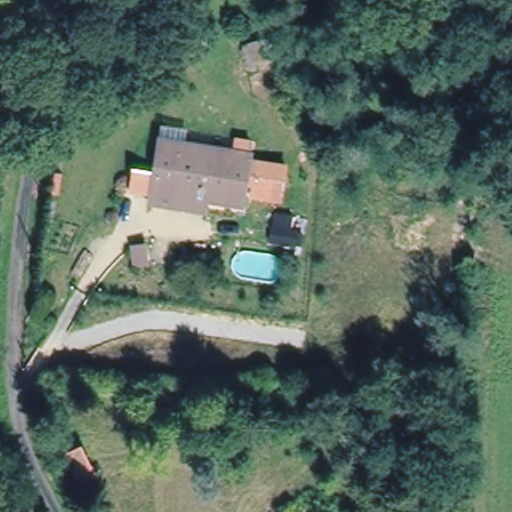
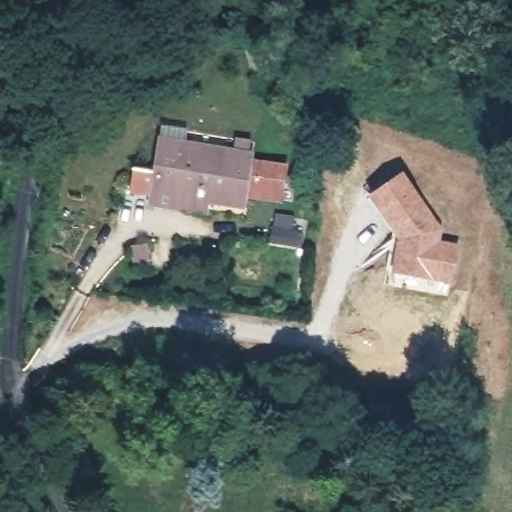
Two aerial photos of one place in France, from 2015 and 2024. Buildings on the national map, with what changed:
unchanged [(156,195),(158,186),(135,182),(139,161),(162,165),(167,134),(255,147),(246,197),(213,192),(211,204),(156,195)]
unchanged [(289,163),(283,203),(246,197),(253,157),(289,163)]
new [(402,171),(442,227),(443,230),(442,240),(459,244),(451,285),(390,273),(395,237),(368,195),(402,171)]
new [(275,212),(307,220),(301,249),(268,242),(275,212)]
unchanged [(145,244),(147,261),(135,262),(133,245),(145,244)]
unchanged [(83,446),(98,478),(81,486),(66,454),(83,446)]

